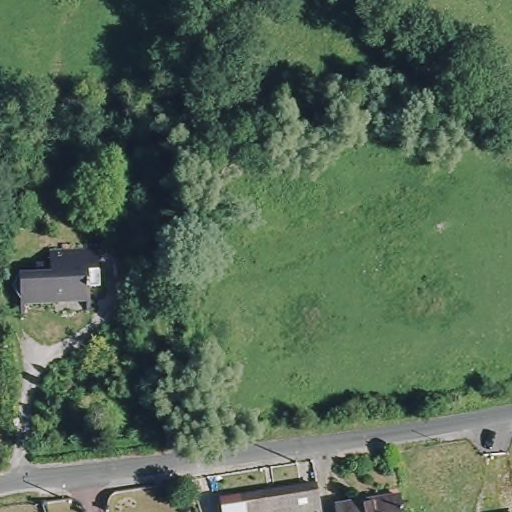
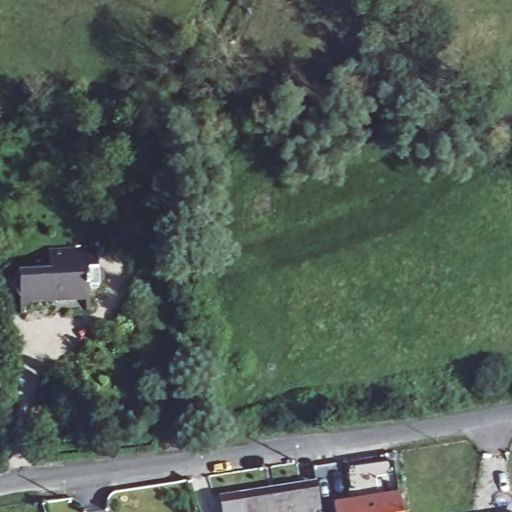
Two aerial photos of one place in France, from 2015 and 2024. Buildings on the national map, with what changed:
unchanged [(96,279),(97,299),(29,304),(26,266),(45,265),(44,255),(55,254),(55,243),(104,239),(107,279),(96,279)]
unchanged [(240,492),(313,482),(317,512),(242,512),(240,492)]
unchanged [(340,505),(400,499),(402,512),(340,512),(340,505)]

